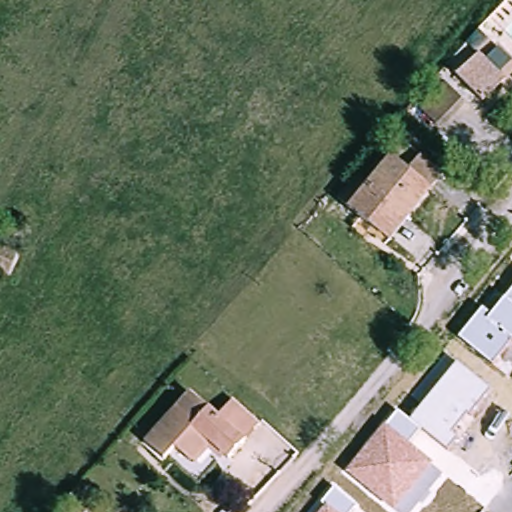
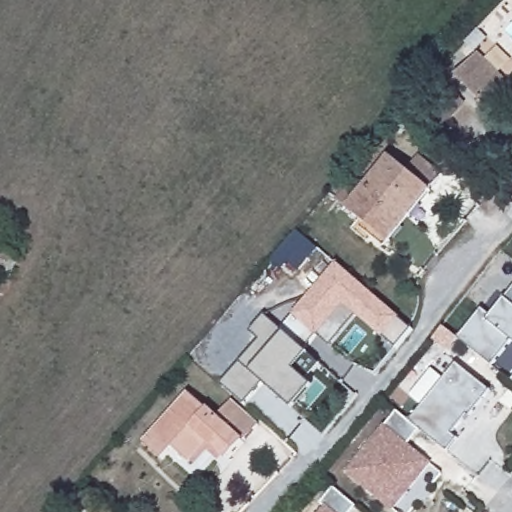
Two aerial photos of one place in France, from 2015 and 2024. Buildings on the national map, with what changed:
unchanged [(508,77),(485,100),(456,71),(480,49),(508,77)]
unchanged [(440,81),(459,97),(435,126),(416,110),(440,81)]
unchanged [(391,247),(382,240),(348,213),(335,201),(356,176),(370,187),(391,161),(407,174),(420,159),(443,178),(430,194),(432,195),(391,247)]
new [(296,229),(316,246),(296,268),(277,251),(296,229)]
unchanged [(17,260),(9,279),(0,275),(0,253),(17,260)]
new [(383,337),(382,338),(356,315),(331,345),(318,335),(317,337),(316,336),(306,350),(281,329),(293,316),(292,315),(337,265),(400,318),(399,320),(412,330),(396,349),(383,337)]
unchanged [(491,365),(457,340),(482,308),(490,316),(504,300),(512,291),(512,339),(510,337),(491,365)]
new [(260,340),(249,331),(264,314),(307,351),(273,391),(263,383),(245,405),(221,384),(240,362),(260,340)]
new [(307,351),(321,363),(306,380),(313,386),(293,409),(273,391),(307,351)]
unchanged [(467,414),(454,432),(460,438),(447,452),(418,430),(407,445),(431,466),(396,512),(395,512),(346,470),(397,411),(410,423),(457,363),(490,389),(470,416),(467,414)]
new [(512,382),(510,380),(512,378),(512,382)]
unchanged [(188,392),(213,413),(227,398),(256,422),(231,451),(222,444),(177,405),(188,392)]
unchanged [(187,457),(173,446),(164,456),(147,443),(177,405),(222,444),(218,448),(213,455),(204,448),(193,462),(187,457)]
unchanged [(98,495),(85,512),(72,512),(63,505),(80,482),(98,495)]
unchanged [(321,505),(335,488),(355,505),(351,512),(323,512),(325,509),(321,505)]

